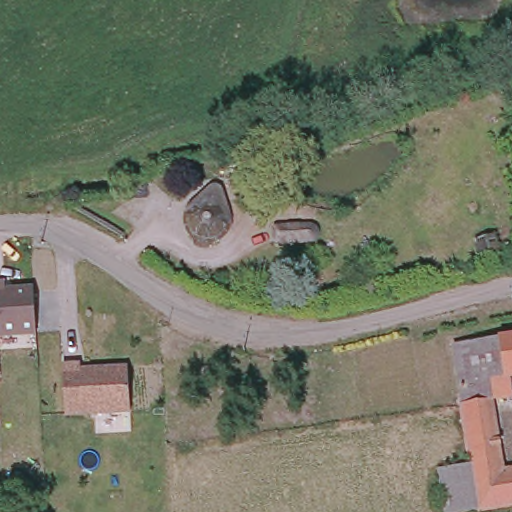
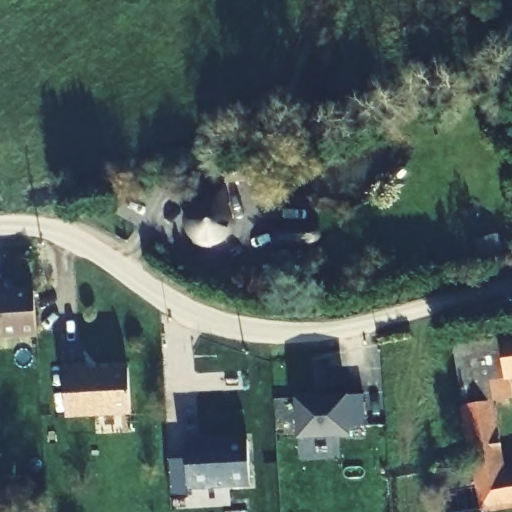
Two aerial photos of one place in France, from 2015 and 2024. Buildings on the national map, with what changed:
unchanged [(257,150),(260,183),(227,187),(220,157),(257,150)]
unchanged [(190,211),(210,196),(216,195),(222,196),(226,202),(226,209),(223,216),(223,225),(224,234),(221,239),(215,242),(207,244),(200,242),(192,238),(186,232),(185,224),(185,217),(190,211)]
unchanged [(278,224),(302,219),(304,232),(280,236),(276,235),(273,232),(272,229),(274,226),(278,224)]
unchanged [(37,335),(0,337),(0,281),(5,281),(5,287),(34,285),(37,335)]
unchanged [(512,376),(490,379),(504,470),(476,475),(475,468),(454,345),(512,337),(512,376)]
unchanged [(132,412),(66,416),(62,360),(84,360),(85,367),(128,363),(132,412)]
new [(351,436),(296,440),(295,395),(348,392),(363,395),(365,425),(350,422),(351,436)]
new [(170,498),(170,460),(186,459),(186,441),(248,436),(250,485),(188,488),(188,497),(170,498)]
unchanged [(475,468),(476,475),(482,507),(447,511),(441,473),(475,468)]
unchanged [(512,469),(512,505),(482,510),(482,507),(476,475),(504,470),(512,469)]

